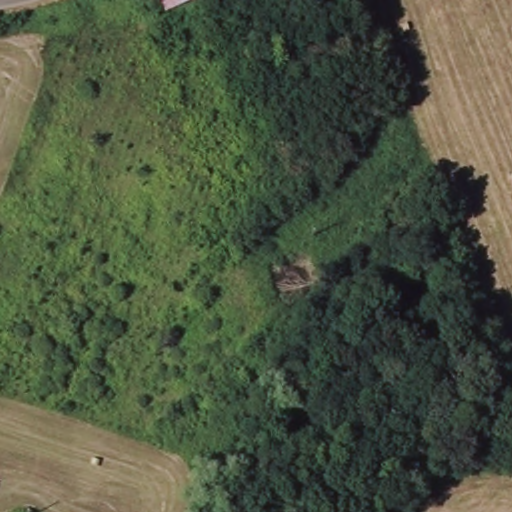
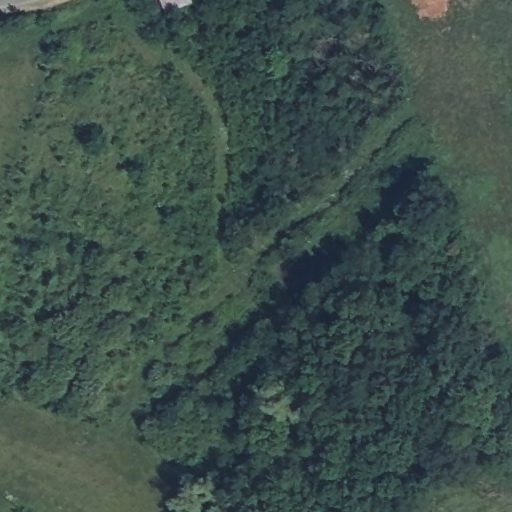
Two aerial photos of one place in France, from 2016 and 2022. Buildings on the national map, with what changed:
unchanged [(161,0),(204,0),(189,6),(166,14),(161,0)]

